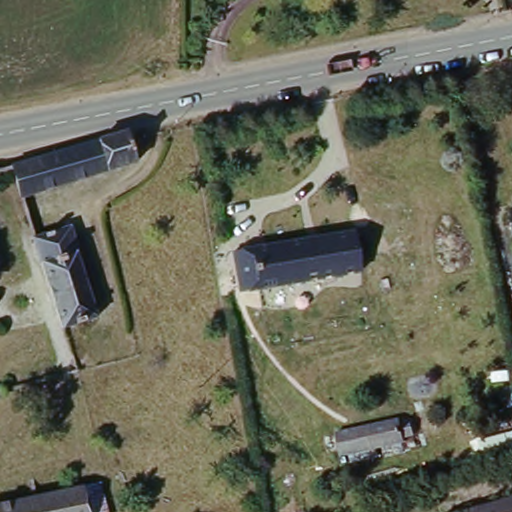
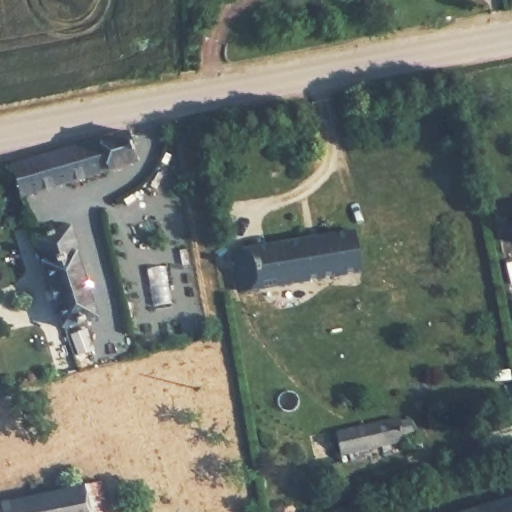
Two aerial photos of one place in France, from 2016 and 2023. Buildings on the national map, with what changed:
unchanged [(132,156),(17,192),(7,160),(122,124),(132,156)]
unchanged [(360,268),(257,286),(248,246),(328,233),(326,220),(342,217),(345,229),(353,229),(360,268)]
unchanged [(42,258),(37,258),(30,233),(71,219),(79,245),(75,247),(97,309),(65,321),(42,258)]
unchanged [(7,400),(0,402),(0,390),(6,389),(7,395),(7,400)]
unchanged [(340,448),(335,426),(401,412),(405,433),(340,448)]
unchanged [(80,479),(87,512),(0,512),(0,497),(80,479)]
unchanged [(512,492),(512,512),(444,512),(512,492)]

